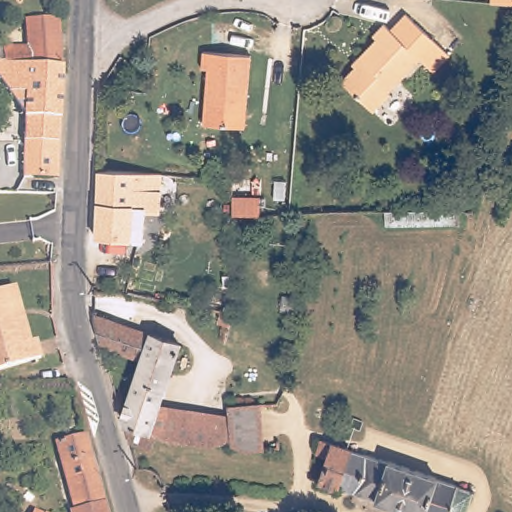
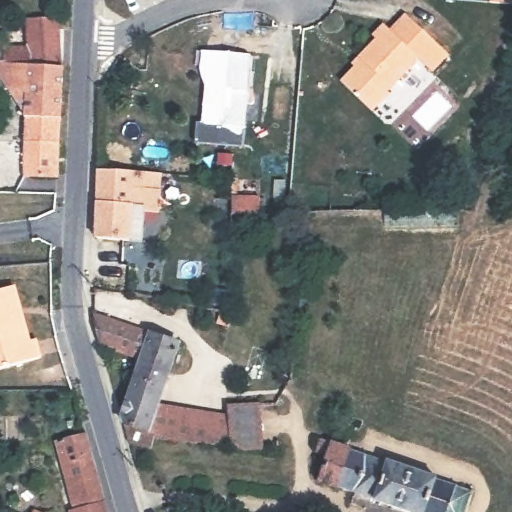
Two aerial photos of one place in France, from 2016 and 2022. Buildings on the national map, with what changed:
unchanged [(492,0),(512,0),(512,3),(492,1),(492,0)]
unchanged [(19,39),(37,36),(36,14),(67,10),(73,60),(39,61),(21,61),(19,39)]
unchanged [(343,76),(362,55),(361,51),(382,27),(389,32),(405,12),(452,51),(436,71),(416,54),(388,86),(390,90),(376,105),(343,76)]
unchanged [(19,39),(21,61),(39,61),(73,60),(73,175),(40,175),(40,127),(0,76),(0,43),(19,39)]
unchanged [(199,70),(200,55),(246,56),(246,122),(206,121),(209,71),(199,70)]
unchanged [(96,235),(98,164),(160,169),(159,208),(143,209),(142,221),(134,221),(132,236),(123,236),(96,235)]
unchanged [(232,190),(257,190),(257,205),(232,205),(232,190)]
unchanged [(18,283),(36,335),(43,333),(49,350),(0,366),(0,290),(10,286),(18,283)]
unchanged [(183,343),(150,427),(158,428),(155,446),(130,443),(121,398),(143,355),(101,341),(97,309),(183,343)]
unchanged [(166,436),(171,401),(229,411),(229,398),(264,400),(266,444),(166,436)]
unchanged [(71,511),(72,508),(78,506),(67,465),(60,441),(85,432),(93,458),(103,493),(109,512),(72,512),(71,511)]
unchanged [(468,512),(417,512),(322,480),(326,463),(315,459),(320,442),(474,491),(468,512)]
unchanged [(46,508),(53,512),(44,512),(46,508)]

